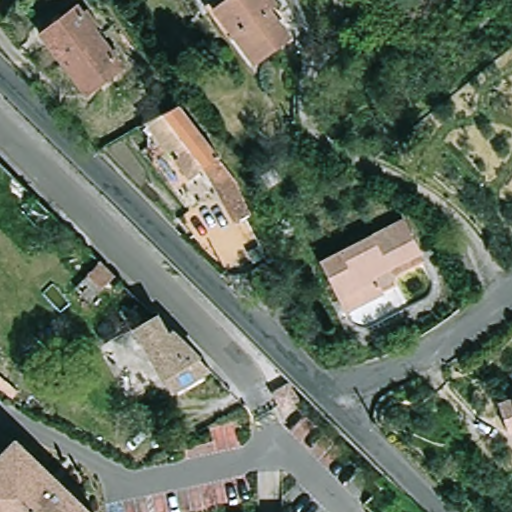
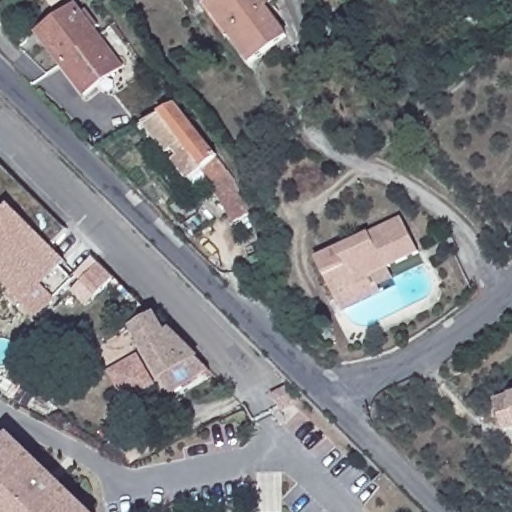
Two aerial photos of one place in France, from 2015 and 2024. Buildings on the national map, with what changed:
unchanged [(227,0),(276,0),(279,4),(272,9),(291,36),(255,63),(216,8),(227,0)]
unchanged [(77,6),(82,14),(86,11),(93,21),(95,20),(99,26),(94,30),(99,37),(62,64),(40,34),(77,6)]
unchanged [(122,67),(85,94),(62,64),(99,37),(122,67)]
unchanged [(244,184),(255,213),(238,223),(207,168),(193,179),(178,161),(183,157),(176,149),(171,153),(149,124),(152,121),(178,106),(180,107),(244,184)]
new [(66,264),(60,269),(71,282),(36,318),(0,282),(0,218),(11,207),(66,264)]
unchanged [(348,313),(340,299),(319,262),(400,217),(419,250),(374,275),(376,279),(384,293),(348,313)]
unchanged [(118,275),(90,303),(60,269),(87,244),(118,275)]
unchanged [(169,338),(175,334),(182,341),(206,365),(220,379),(179,403),(133,328),(156,315),(169,338)]
unchanged [(289,386),(297,401),(282,409),(273,394),(289,386)]
unchanged [(496,402),(512,396),(512,430),(506,433),(496,402)]
unchanged [(12,438),(43,468),(38,473),(52,486),(53,486),(53,485),(54,484),(55,484),(56,484),(57,484),(58,484),(59,484),(60,485),(61,486),(75,499),(88,512),(0,512),(0,450),(12,438)]

